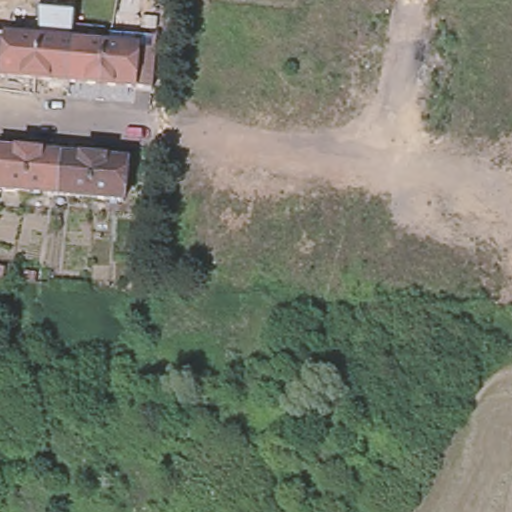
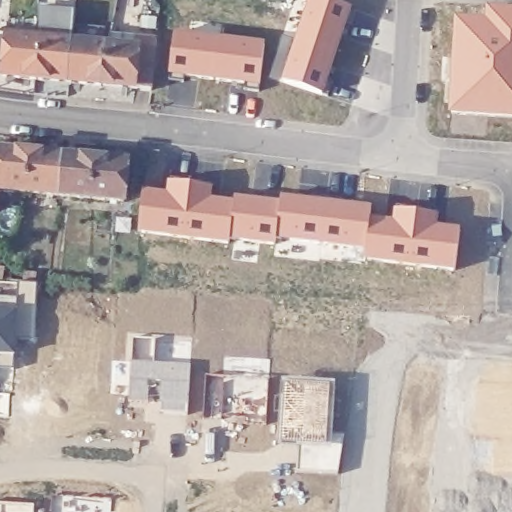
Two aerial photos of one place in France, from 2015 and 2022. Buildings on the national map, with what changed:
new [(323,91),(281,78),(307,0),(339,0),(351,5),(323,91)]
new [(485,14),(486,2),(512,4),(512,115),(448,112),(454,12),(485,14)]
new [(264,40),(260,83),(168,71),(173,28),(264,40)]
unchanged [(103,48),(105,38),(132,40),(150,42),(145,91),(127,90),(95,88),(98,48),(103,48)]
unchanged [(0,56),(1,40),(32,43),(30,82),(0,80),(0,56)]
unchanged [(32,43),(65,45),(63,85),(30,82),(32,43)]
unchanged [(65,45),(98,48),(95,88),(63,85),(65,45)]
unchanged [(0,189),(0,149),(30,151),(25,191),(0,189)]
unchanged [(58,193),(25,191),(30,151),(62,154),(58,193)]
unchanged [(91,196),(58,193),(62,154),(93,156),(91,196)]
unchanged [(126,159),(123,198),(91,196),(93,156),(126,159)]
new [(165,187),(167,178),(213,183),(212,194),(235,197),(235,194),(281,200),(282,194),(370,204),(370,216),(393,220),(395,208),(439,213),(438,223),(460,225),(456,269),(363,258),(365,246),(275,236),(275,243),(230,238),(229,241),(136,229),(142,187),(165,187)]
new [(16,353),(0,352),(0,305),(18,306),(16,353)]
new [(190,363),(188,411),(160,411),(160,382),(148,381),(148,400),(130,400),(131,360),(190,363)]
new [(268,379),(265,416),(206,414),(205,373),(268,379)]
new [(333,380),(330,442),(279,440),(282,378),(333,380)]
new [(111,500),(111,512),(51,512),(51,496),(111,500)]
new [(35,512),(0,512),(0,503),(35,504),(35,512)]

